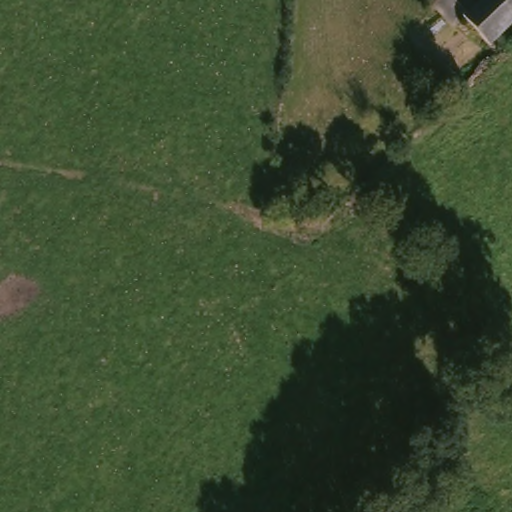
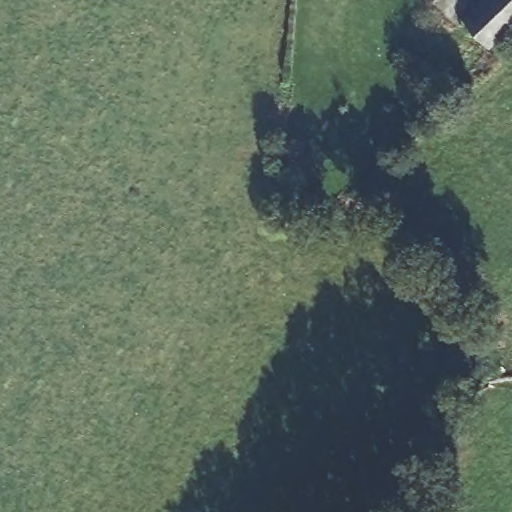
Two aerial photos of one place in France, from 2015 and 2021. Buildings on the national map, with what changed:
unchanged [(484,0),(512,0),(512,26),(491,46),(465,18),(484,0)]

